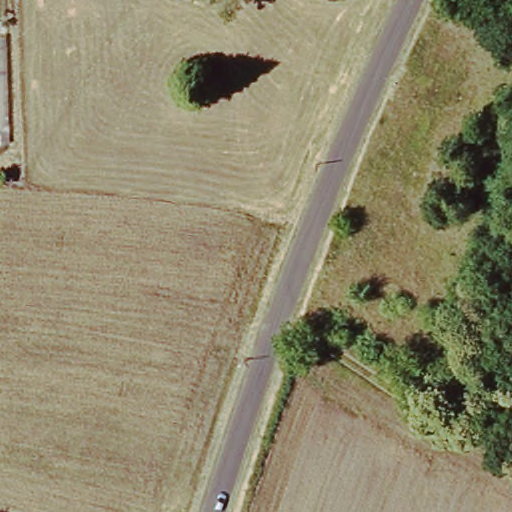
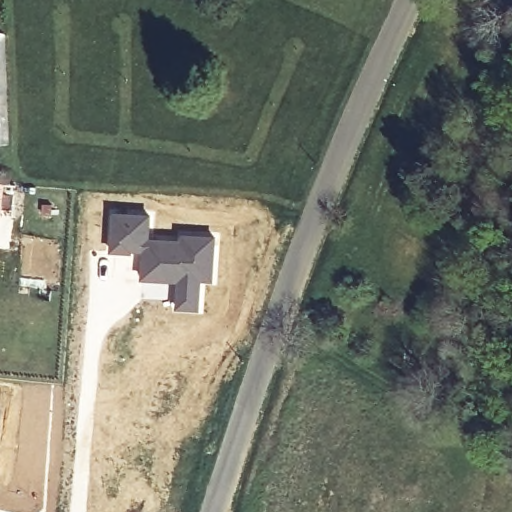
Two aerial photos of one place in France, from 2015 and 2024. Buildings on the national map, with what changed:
new [(3,218),(0,218),(0,182),(6,182),(3,218)]
new [(109,210),(151,213),(150,236),(178,239),(178,232),(216,235),(212,282),(202,281),(199,311),(173,310),(174,282),(138,278),(138,254),(107,252),(109,210)]

